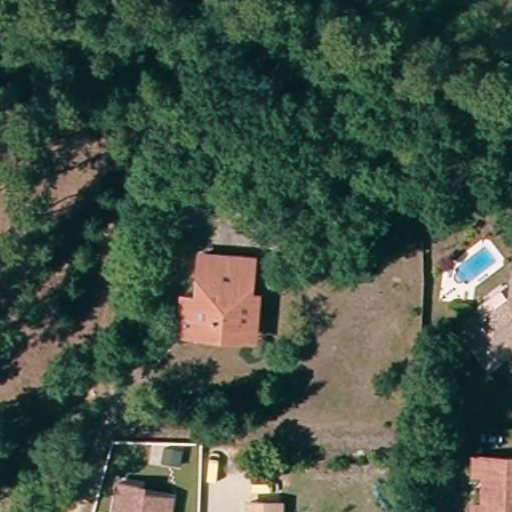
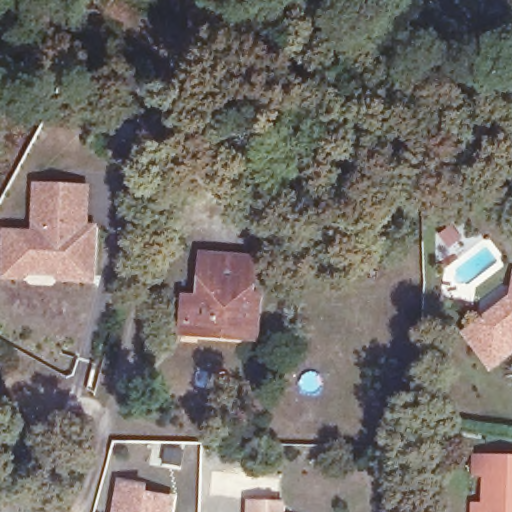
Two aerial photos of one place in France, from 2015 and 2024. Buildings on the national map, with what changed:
new [(92,283),(58,282),(52,276),(25,276),(25,280),(0,279),(0,251),(2,228),(30,230),(32,181),(90,185),(89,224),(97,224),(92,283)]
unchanged [(181,322),(182,310),(183,295),(194,297),(197,295),(200,257),(251,260),(249,296),(256,295),(255,333),(216,332),(215,337),(197,336),(180,335),(181,322)]
unchanged [(511,276),(512,276),(512,344),(490,360),(466,327),(510,297),(511,276)]
unchanged [(480,507),(481,477),(471,476),(471,460),(512,461),(512,512),(470,512),(470,507),(480,507)]
unchanged [(129,482),(147,487),(145,495),(177,503),(175,512),(120,512),(129,482)]
unchanged [(241,507),(245,507),(273,505),(274,512),(242,512),(241,507)]

